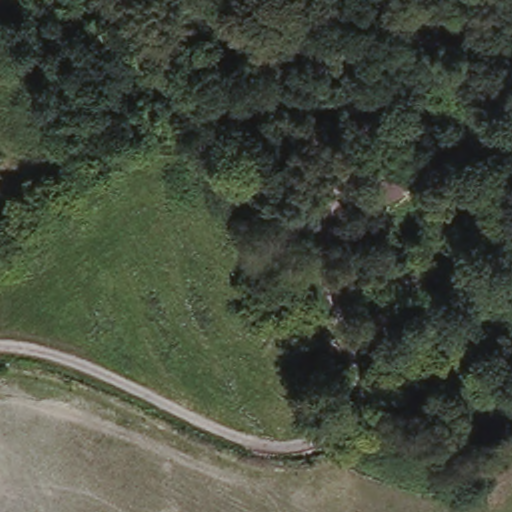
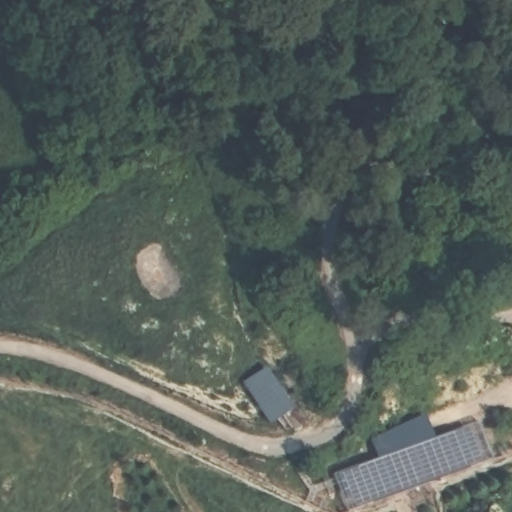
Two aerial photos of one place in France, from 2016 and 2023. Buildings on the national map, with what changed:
new [(270,364),(295,406),(268,422),(243,381),(270,364)]
new [(330,473),(378,457),(370,434),(430,416),(437,435),(481,422),(492,457),(346,511),(330,473)]

